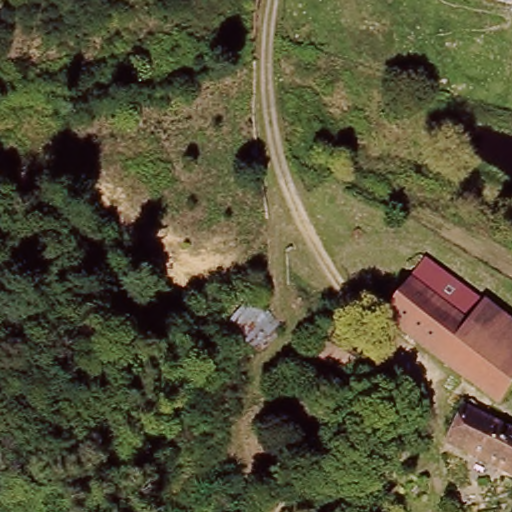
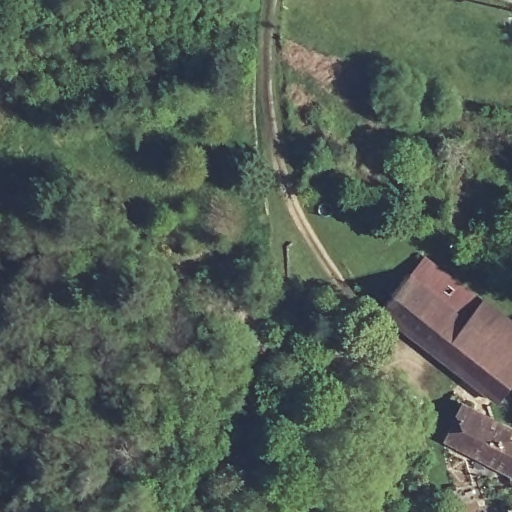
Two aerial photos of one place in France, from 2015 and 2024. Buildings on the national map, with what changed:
unchanged [(382,308),(422,255),(483,301),(468,320),(512,353),(512,372),(495,395),(382,308)]
unchanged [(278,308),(266,348),(215,331),(228,290),(278,308)]
unchanged [(483,301),(485,298),(512,320),(512,353),(468,320),(483,301)]
unchanged [(317,353),(327,336),(357,355),(347,371),(317,353)]
unchanged [(468,406),(512,428),(512,473),(447,441),(468,406)]

